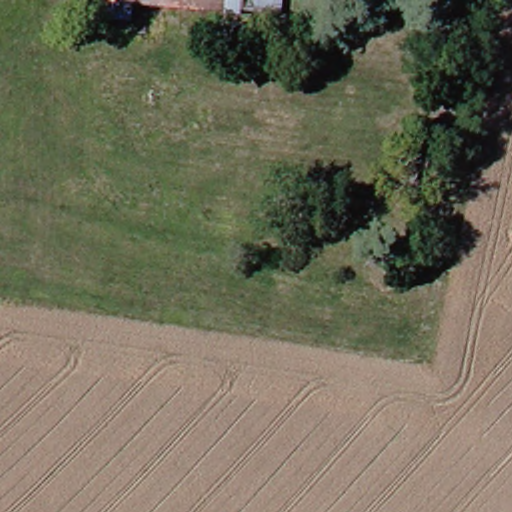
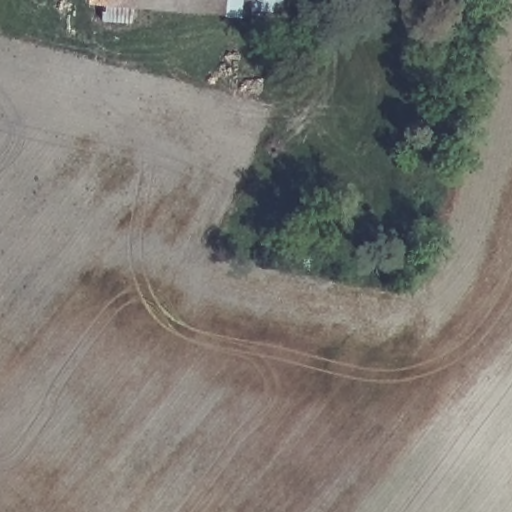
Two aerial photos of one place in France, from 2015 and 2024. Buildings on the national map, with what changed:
unchanged [(89,0),(118,0),(116,15),(88,14),(89,0)]
unchanged [(266,0),(266,9),(145,0),(266,0)]

